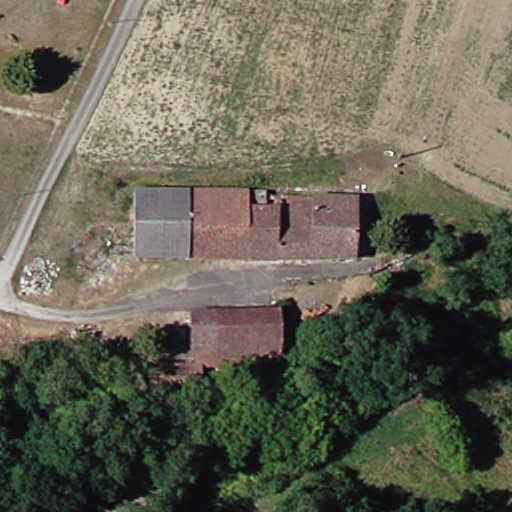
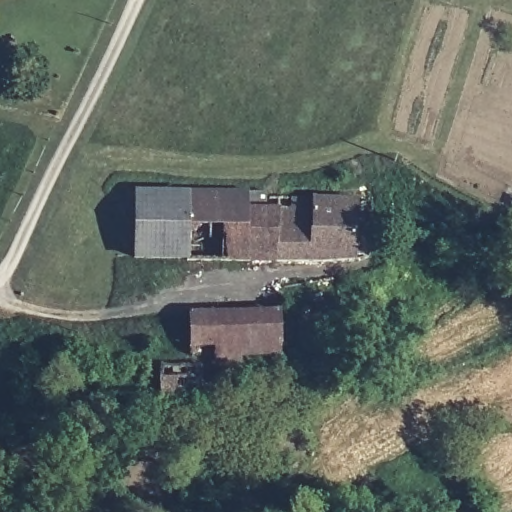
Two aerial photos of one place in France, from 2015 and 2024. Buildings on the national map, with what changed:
unchanged [(241,200),(242,260),(183,260),(180,256),(182,197),(182,192),(260,192),(261,200),(241,200)]
unchanged [(180,256),(130,257),(131,196),(182,197),(180,256)]
unchanged [(268,200),(268,260),(242,260),(241,200),(261,200),(268,200)]
unchanged [(348,200),(348,260),(268,260),(268,200),(348,200)]
unchanged [(217,367),(215,347),(190,346),(190,316),(273,314),(272,367),(217,367)]
unchanged [(159,397),(159,368),(196,368),(196,397),(159,397)]

